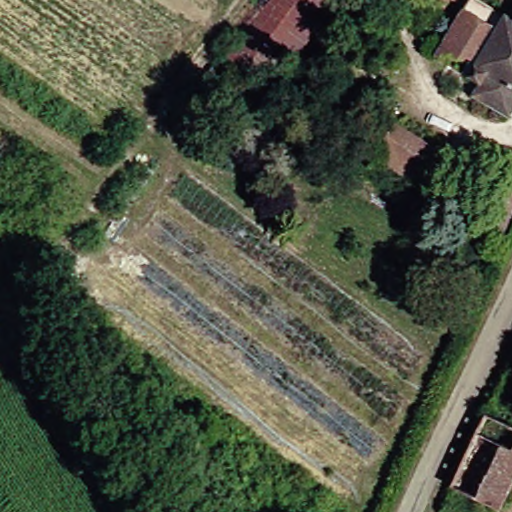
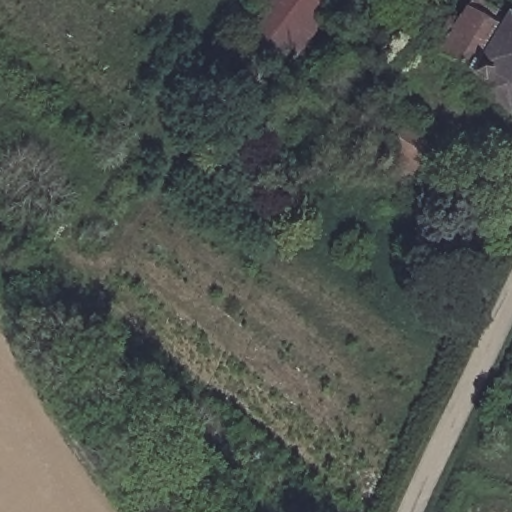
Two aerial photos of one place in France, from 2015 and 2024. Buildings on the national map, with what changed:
unchanged [(215,55),(250,8),(259,12),(268,0),(331,0),(302,43),(283,31),(257,68),(235,53),(227,64),(215,55)]
unchanged [(503,19),(505,15),(512,19),(512,103),(505,114),(471,95),(479,82),(435,56),(468,0),(472,0),(503,19)]
unchanged [(391,129),(392,127),(426,149),(403,187),(370,162),(391,129)]
demolished [(512,427),(512,482),(499,510),(450,487),(484,415),(512,427)]

